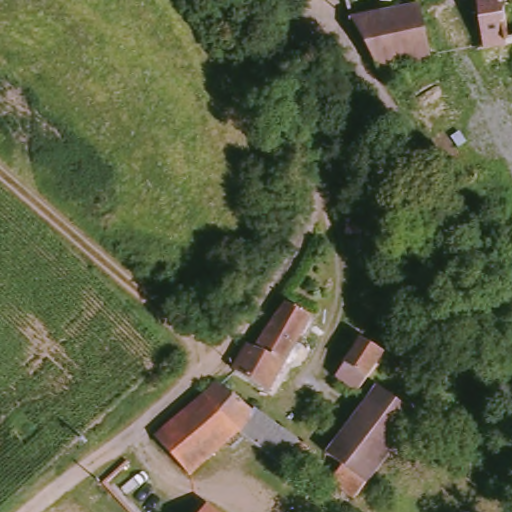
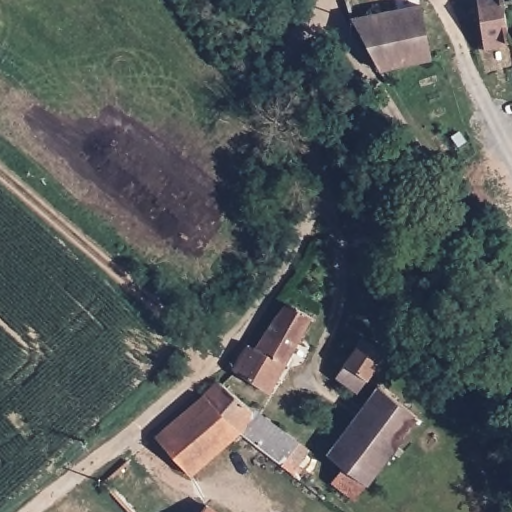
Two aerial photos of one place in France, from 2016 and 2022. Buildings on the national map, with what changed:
unchanged [(258,0),(266,0),(272,9),(250,25),(241,12),(258,0)]
unchanged [(474,0),(502,0),(502,1),(510,41),(483,45),(474,0)]
unchanged [(423,5),(432,60),(370,70),(350,20),(423,5)]
unchanged [(271,38),(262,45),(256,35),(265,30),(268,34),(271,38)]
unchanged [(287,301),(317,323),(287,366),(285,366),(256,344),(287,301)]
unchanged [(365,336),(384,352),(365,376),(355,387),(337,372),(365,336)]
unchanged [(256,344),(285,366),(287,366),(268,393),(232,365),(250,340),(256,344)]
unchanged [(262,410),(245,432),(201,398),(217,375),(219,377),(262,410)]
unchanged [(415,414),(387,450),(346,503),(327,489),(344,465),(324,450),(376,385),(415,414)]
unchanged [(290,465),(278,480),(231,443),(189,475),(155,436),(201,398),(245,432),(262,410),(293,433),(307,444),(290,465)]
unchanged [(213,512),(198,512),(203,505),(213,512)]

